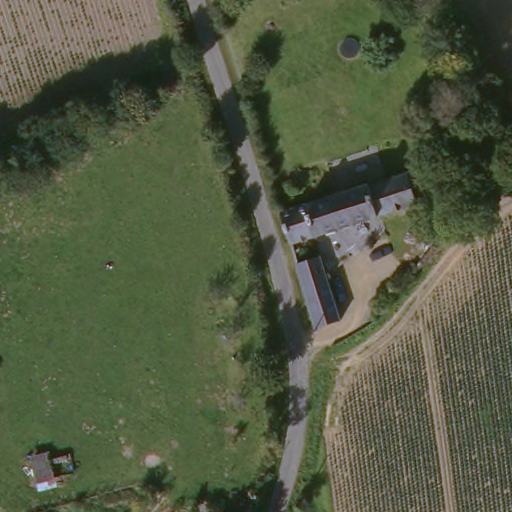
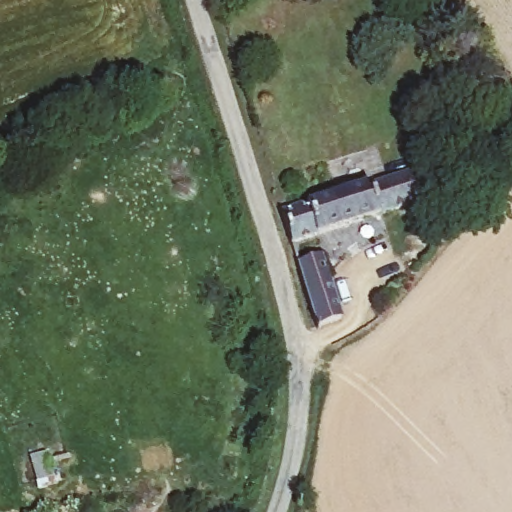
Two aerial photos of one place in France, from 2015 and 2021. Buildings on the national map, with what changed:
unchanged [(404,174),(404,175),(424,171),(428,180),(421,184),(425,200),(375,216),(366,186),(404,174)]
unchanged [(287,244),(276,213),(364,183),(366,186),(375,216),(287,244)]
unchanged [(323,255),(344,319),(318,327),(299,263),(323,255)]

